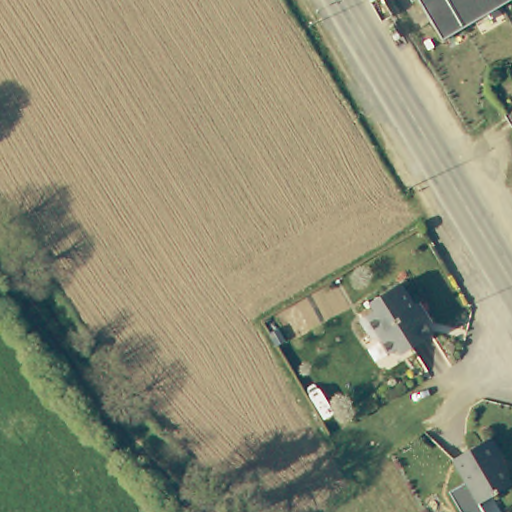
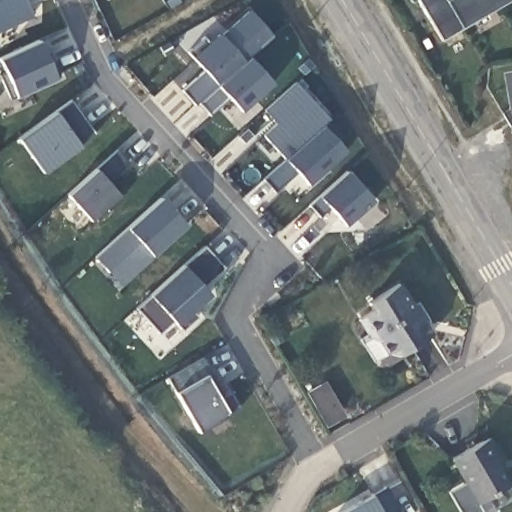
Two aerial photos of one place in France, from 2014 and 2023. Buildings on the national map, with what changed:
new [(33,16),(0,30),(0,0),(27,0),(33,16)]
unchanged [(441,40),(418,0),(509,0),(441,40)]
new [(202,67),(187,51),(204,34),(211,42),(247,9),(272,33),(249,53),(275,82),(243,112),(231,96),(211,116),(201,102),(196,106),(183,91),(202,67)]
new [(43,41),(60,78),(17,98),(1,62),(43,41)]
new [(285,157),(263,135),(275,122),(264,110),(296,82),(329,117),(324,123),(349,152),(310,185),(297,170),(275,191),(263,177),(285,157)]
new [(58,110),(71,101),(93,130),(78,140),(82,147),(43,174),(19,138),(58,110)]
new [(95,169),(117,151),(128,163),(108,181),(120,196),(90,221),(69,195),(95,169)]
new [(321,194),(348,171),(375,200),(346,225),(329,206),(319,216),(309,204),(321,194)]
new [(128,228),(163,196),(189,224),(154,256),(123,288),(95,257),(128,228)]
new [(151,296),(184,265),(205,247),(223,267),(202,284),(213,295),(178,326),(170,316),(159,330),(137,308),(151,296)]
unchanged [(413,340),(395,351),(385,335),(378,340),(365,319),(380,310),(375,301),(407,281),(439,335),(418,348),(413,340)]
new [(200,357),(207,375),(219,396),(232,391),(239,406),(225,415),(199,429),(178,393),(168,377),(200,357)]
new [(327,382),(348,416),(331,426),(310,392),(327,382)]
unchanged [(459,459),(491,441),(512,474),(512,482),(483,499),(459,459)]
new [(483,499),(478,503),(483,512),(460,512),(448,491),(470,478),(483,499)]
new [(398,509),(395,512),(339,512),(387,488),(398,509)]

